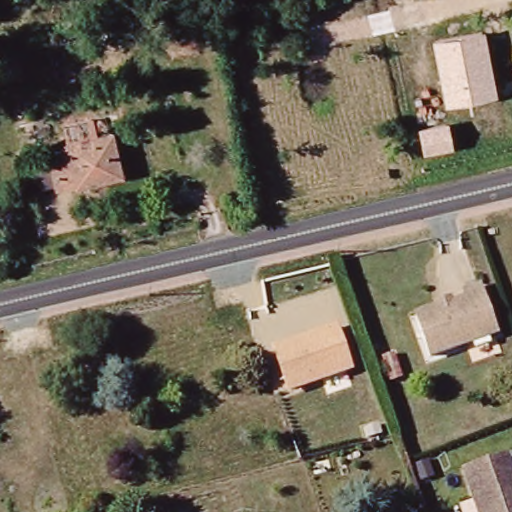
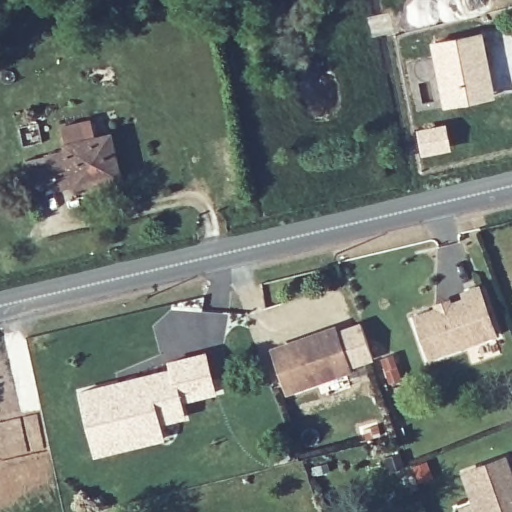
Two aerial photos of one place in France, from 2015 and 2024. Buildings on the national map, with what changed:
unchanged [(432,40),(484,30),(496,95),(444,106),(432,40)]
new [(445,124),(449,144),(424,148),(419,128),(445,124)]
unchanged [(71,190),(70,186),(52,190),(53,186),(30,189),(25,162),(44,158),(43,152),(63,148),(60,142),(107,135),(119,175),(71,190)]
unchanged [(468,292),(484,288),(501,334),(436,358),(421,318),(444,309),(443,306),(454,302),(454,304),(469,298),(468,292)]
unchanged [(338,329),(361,321),(374,359),(352,367),(354,371),(287,393),(270,347),(336,325),(338,329)]
new [(24,329),(41,408),(21,413),(4,334),(24,329)]
new [(167,366),(165,358),(207,349),(218,392),(184,401),(188,417),(163,423),(166,438),(92,457),(76,388),(167,366)]
unchanged [(406,379),(395,384),(385,359),(399,355),(406,379)]
unchanged [(508,455),(512,466),(512,512),(482,512),(467,471),(508,455)]
unchanged [(478,501),(482,512),(461,512),(459,507),(478,501)]

